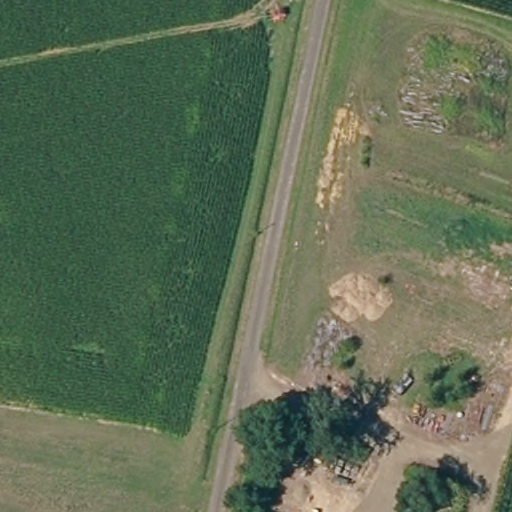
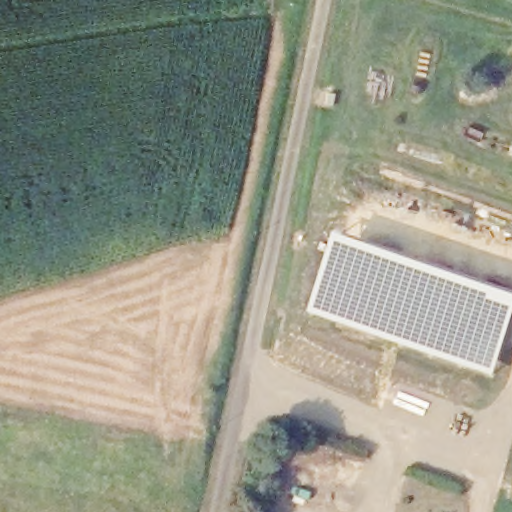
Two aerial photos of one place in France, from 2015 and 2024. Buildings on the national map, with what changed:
new [(334,237),(512,298),(512,323),(494,376),(308,313),(334,237)]

